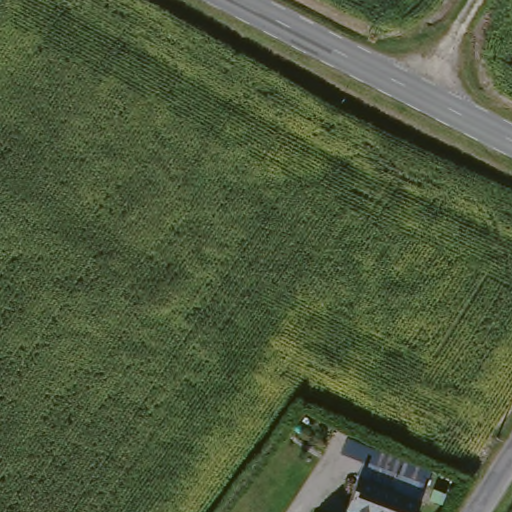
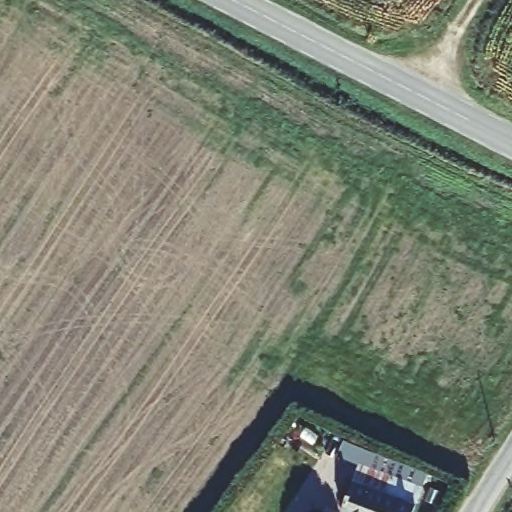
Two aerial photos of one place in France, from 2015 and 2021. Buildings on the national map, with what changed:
unchanged [(372,512),(351,501),(374,456),(414,477),(421,463),(439,474),(434,487),(426,502),(420,512),(372,512)]

